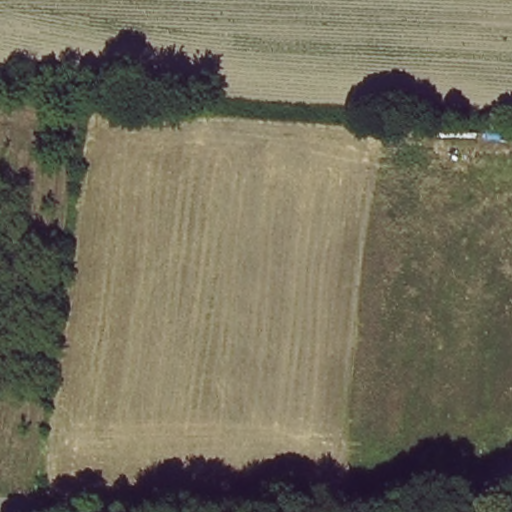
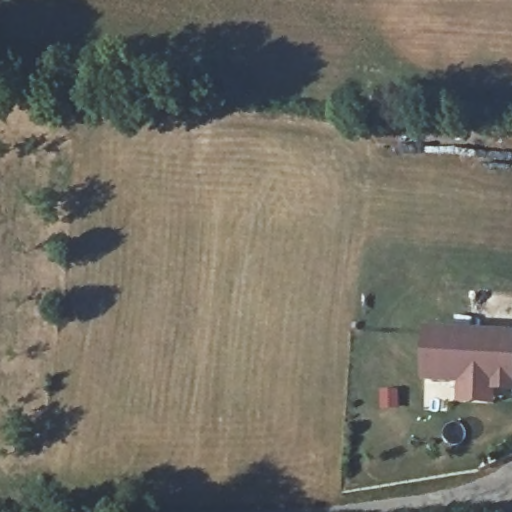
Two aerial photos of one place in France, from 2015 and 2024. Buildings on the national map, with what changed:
new [(425,331),(512,337),(512,370),(511,390),(489,388),(490,376),(458,374),(458,381),(422,378),(425,331)]

